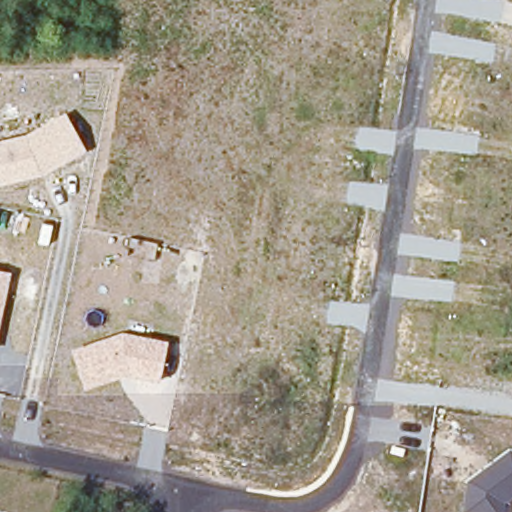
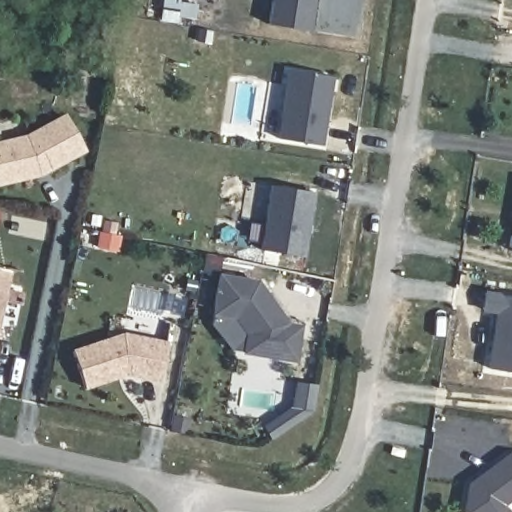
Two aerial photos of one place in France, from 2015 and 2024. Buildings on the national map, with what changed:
new [(272,0),(313,0),(309,30),(268,25),(272,0)]
new [(276,138),(288,70),(332,77),(322,145),(276,138)]
unchanged [(42,177),(0,185),(0,142),(29,136),(65,114),(86,152),(42,177)]
new [(260,250),(270,185),(315,192),(305,256),(260,250)]
new [(511,252),(512,245),(512,252),(511,252)]
unchanged [(0,271),(12,273),(0,329),(0,271)]
new [(241,353),(244,333),(233,317),(212,315),(217,274),(257,280),(288,323),(301,324),(295,362),(241,353)]
new [(486,368),(494,314),(481,312),(484,291),(512,296),(512,372),(486,368)]
unchanged [(160,381),(125,376),(83,391),(68,350),(119,332),(169,343),(160,381)]
unchanged [(504,497),(502,512),(461,512),(463,487),(512,454),(512,492),(504,497)]

